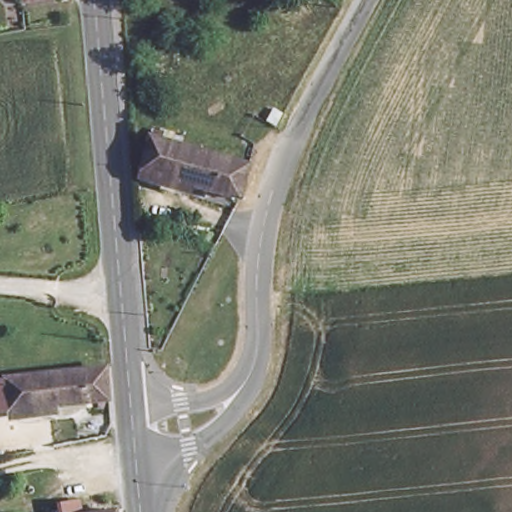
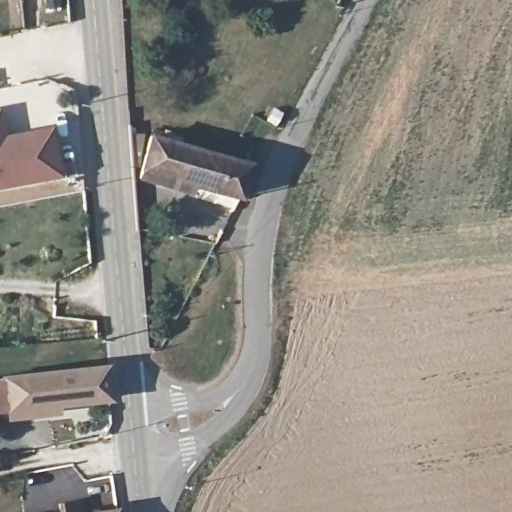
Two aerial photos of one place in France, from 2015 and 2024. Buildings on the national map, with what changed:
new [(6,139),(54,130),(63,182),(0,193),(0,112),(1,112),(6,139)]
unchanged [(249,165),(236,209),(142,183),(153,135),(249,165)]
demolished [(126,220),(166,223),(164,239),(128,237),(126,220)]
unchanged [(7,405),(0,406),(0,371),(3,371),(108,357),(110,391),(19,404),(19,416),(8,416),(7,405)]
unchanged [(41,511),(59,508),(58,501),(57,494),(75,491),(76,498),(77,506),(114,500),(114,512),(41,512),(41,511)]

